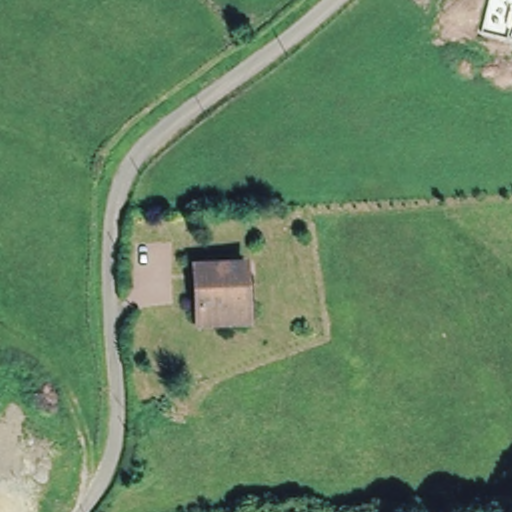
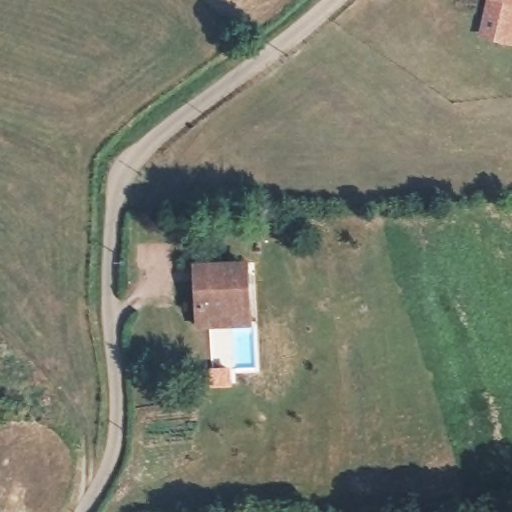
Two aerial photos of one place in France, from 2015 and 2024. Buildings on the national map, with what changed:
new [(478,36),(486,0),(512,0),(512,43),(478,36)]
unchanged [(203,322),(202,309),(199,268),(248,264),(249,305),(250,319),(203,322)]

